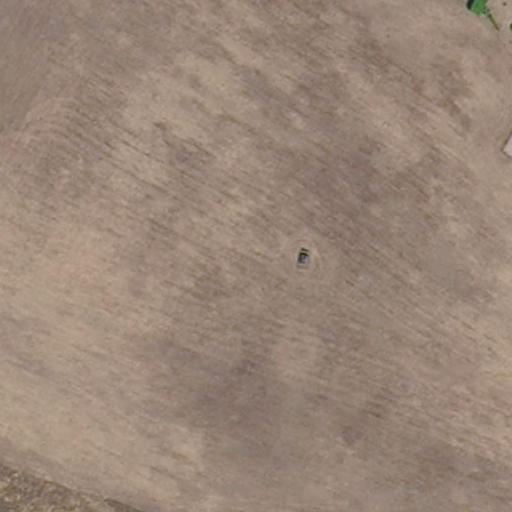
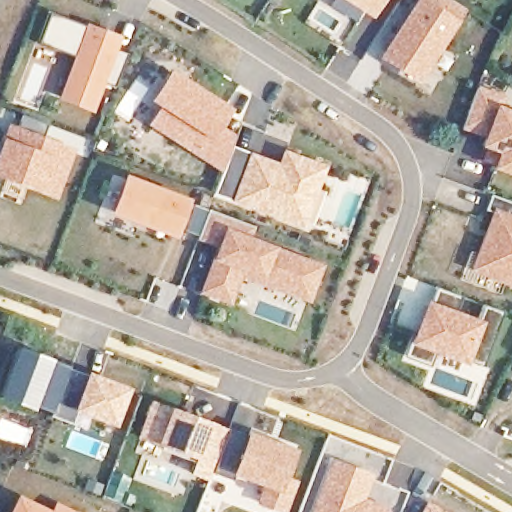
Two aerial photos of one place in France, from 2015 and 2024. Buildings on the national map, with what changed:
new [(355,0),(384,0),(376,13),(355,0)]
new [(452,0),(454,1),(465,8),(455,22),(422,75),(388,52),(422,0),(452,0)]
new [(118,88),(103,82),(93,109),(67,98),(81,59),(42,44),(53,13),(102,31),(120,38),(116,49),(131,54),(118,88)]
new [(222,125),(237,135),(231,148),(234,149),(224,175),(148,125),(160,107),(150,101),(171,70),(232,110),(222,125)]
new [(501,153),(484,147),(487,137),(464,129),(477,90),(502,99),(500,104),(512,108),(512,175),(496,169),(501,153)]
new [(8,123),(18,126),(23,115),(86,139),(81,151),(76,150),(56,200),(0,178),(0,143),(8,123)]
new [(234,149),(274,164),(273,167),(282,171),(288,154),(326,168),(305,225),(218,192),(234,149)]
new [(157,227),(142,221),(118,212),(130,180),(188,201),(178,227),(176,234),(157,227)]
new [(495,234),(490,232),(493,223),(498,225),(502,215),(488,210),(493,195),(512,202),(512,282),(481,270),(495,234)]
new [(211,210),(201,236),(187,230),(197,205),(211,210)]
new [(254,226),(258,227),(252,242),(248,240),(322,269),(310,300),(280,288),(282,283),(243,268),(237,285),(240,286),(236,298),(233,296),(231,300),(208,291),(226,245),(202,235),(211,210),(254,226)]
new [(427,318),(434,321),(438,311),(431,308),(439,287),(466,297),(459,317),(479,325),(487,305),(507,312),(486,368),(418,342),(427,318)]
new [(56,415),(37,407),(35,412),(0,400),(0,395),(17,348),(55,360),(71,368),(70,370),(56,415)]
new [(77,412),(73,423),(55,417),(70,370),(88,372),(131,388),(116,427),(77,412)]
new [(196,474),(201,460),(143,438),(155,405),(230,433),(215,475),(213,480),(196,474)]
new [(232,430),(251,436),(253,432),(271,439),(297,449),(295,453),(307,457),(297,484),(287,512),(285,512),(263,503),(269,486),(238,475),(236,482),(215,475),(230,433),(232,430)]
new [(372,477),(363,502),(388,511),(387,512),(318,512),(336,464),(372,477)]
new [(18,495),(52,510),(57,503),(75,512),(10,512),(18,495)]
new [(429,505),(442,512),(424,512),(429,505)]

